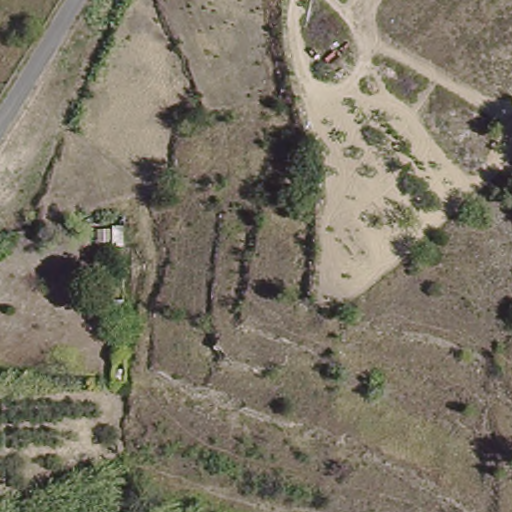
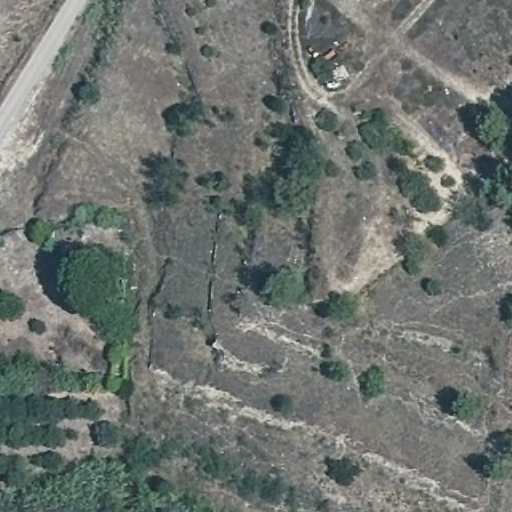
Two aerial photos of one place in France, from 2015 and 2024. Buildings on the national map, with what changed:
unchanged [(91,221),(122,219),(123,242),(92,245),(91,221)]

